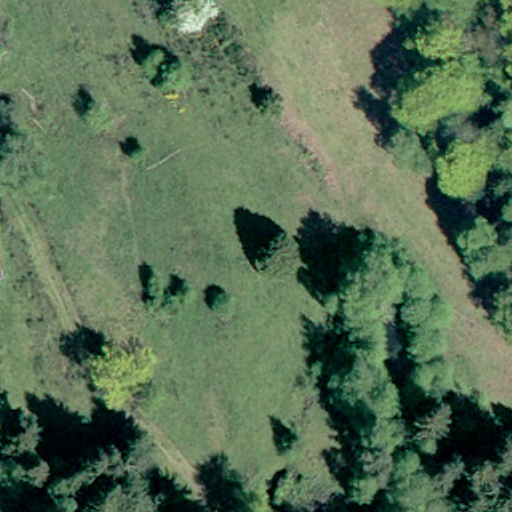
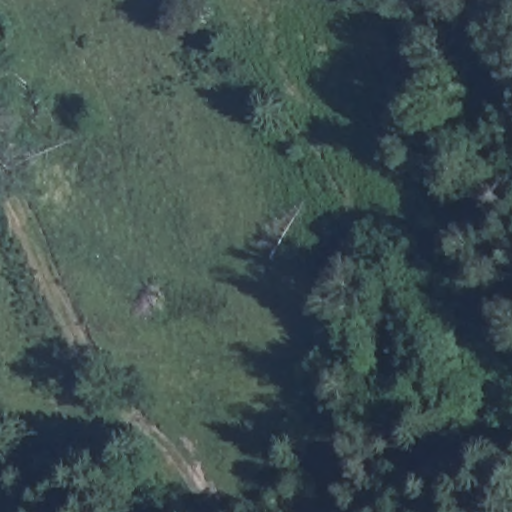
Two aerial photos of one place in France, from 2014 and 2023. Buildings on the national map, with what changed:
unchanged [(0,289),(0,281),(2,288),(0,289)]

